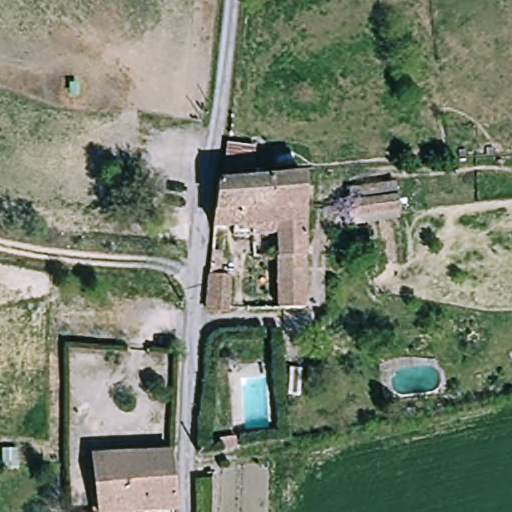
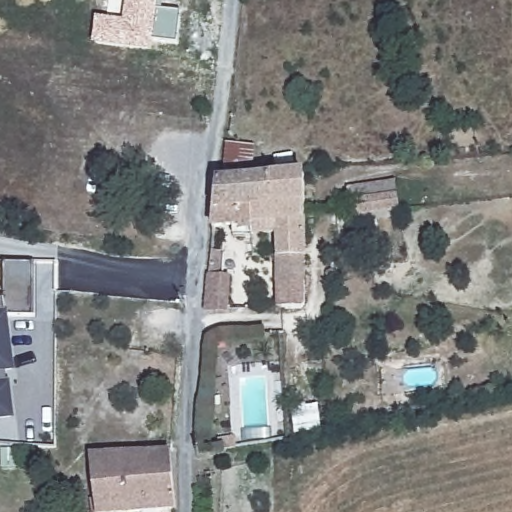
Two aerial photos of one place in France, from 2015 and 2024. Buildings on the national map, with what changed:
new [(153,50),(93,43),(95,16),(123,20),(125,0),(158,0),(156,9),(180,12),(177,42),(153,40),(153,50)]
unchanged [(308,301),(304,305),(281,305),(282,251),(281,230),(265,232),(256,232),(238,233),(236,222),(218,223),(223,177),(230,176),(228,158),(233,139),(259,142),(259,146),(258,157),(258,167),(259,175),(309,170),(308,301)]
unchanged [(391,192),(391,187),(397,186),(399,207),(349,213),(348,197),(391,192)]
new [(0,421),(0,300),(5,301),(5,285),(5,264),(38,265),(38,285),(34,285),(34,319),(8,318),(13,372),(6,372),(8,388),(12,420),(0,421)]
unchanged [(229,276),(227,309),(205,308),(208,275),(229,276)]
unchanged [(141,509),(112,512),(95,512),(91,455),(169,448),(174,506),(161,508),(161,512),(141,512),(141,509)]

